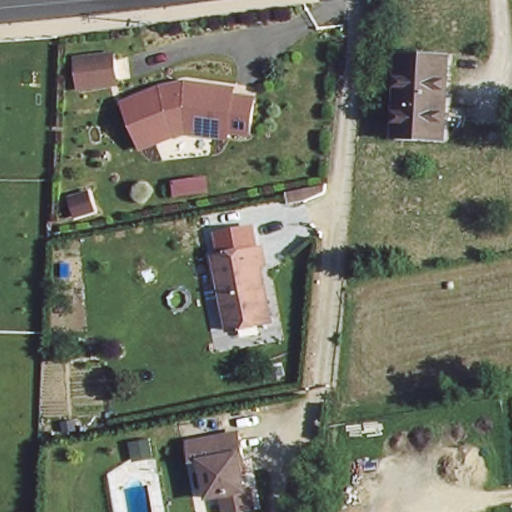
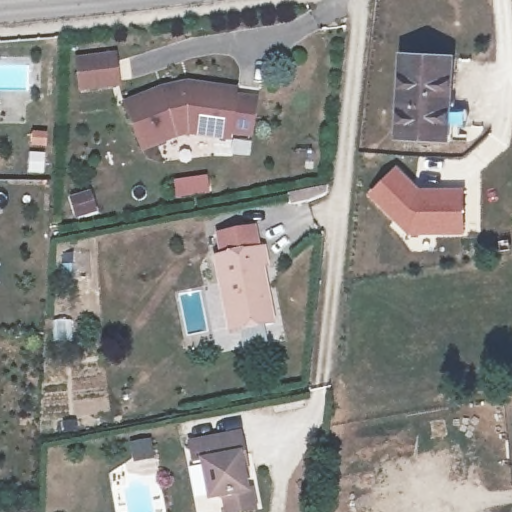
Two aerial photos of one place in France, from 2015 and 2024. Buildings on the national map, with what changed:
unchanged [(450,134),(401,131),(406,52),(453,54),(450,134)]
unchanged [(117,86),(76,90),(75,61),(114,56),(117,86)]
unchanged [(237,94),(257,96),(252,133),(232,130),(230,135),(185,130),(141,147),(123,101),(141,94),(155,88),(165,84),(187,80),(190,81),(193,81),(236,88),(237,94)]
new [(396,164),(421,188),(464,187),(465,236),(409,237),(366,194),(396,164)]
new [(290,204),(287,191),(326,182),(329,196),(290,204)]
unchanged [(93,224),(75,230),(69,211),(88,206),(93,224)]
unchanged [(267,268),(261,270),(273,325),(230,333),(215,259),(263,250),(267,268)]
unchanged [(254,511),(250,512),(226,512),(222,497),(208,500),(201,464),(191,466),(186,446),(238,435),(243,455),(248,473),(242,475),(246,492),(250,492),(254,511)]
unchanged [(151,468),(131,472),(128,457),(148,453),(151,468)]

